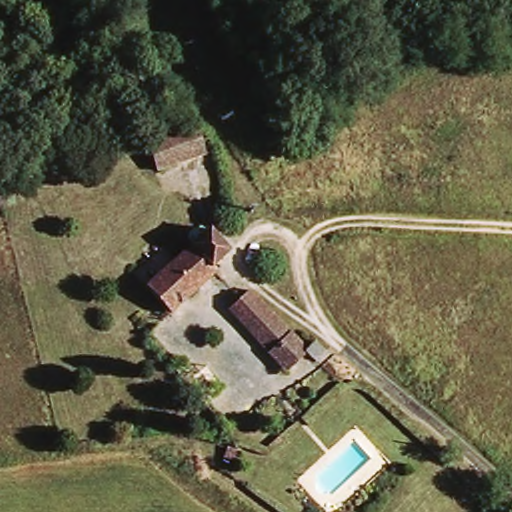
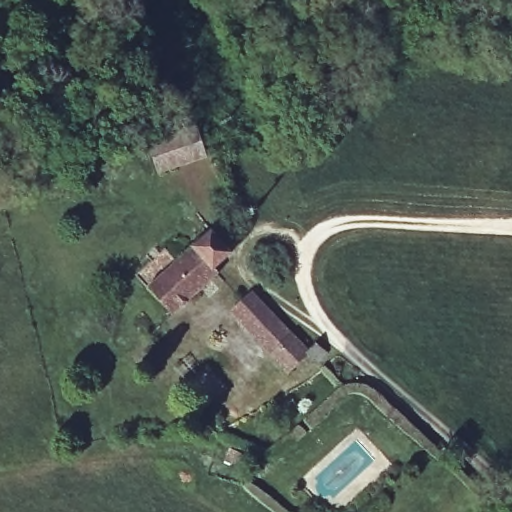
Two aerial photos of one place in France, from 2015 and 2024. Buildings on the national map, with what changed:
unchanged [(195,126),(206,153),(157,173),(146,147),(195,126)]
unchanged [(22,186),(30,212),(8,218),(1,192),(22,186)]
unchanged [(206,227),(225,248),(210,262),(214,266),(167,308),(143,282),(206,227)]
unchanged [(289,330),(265,355),(225,318),(252,288),(289,330)]
unchanged [(328,348),(314,361),(305,353),(283,374),(265,355),(289,330),(306,346),(313,338),(328,348)]

